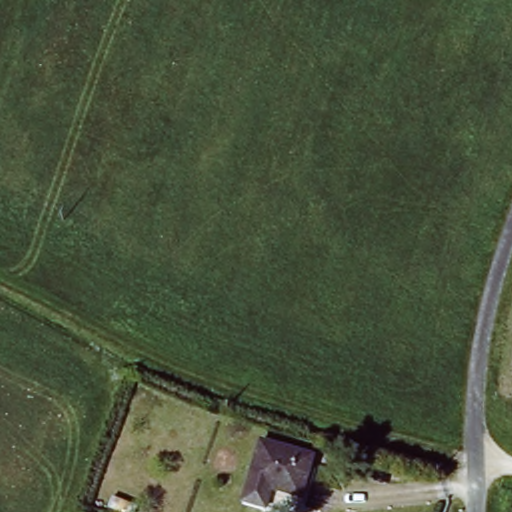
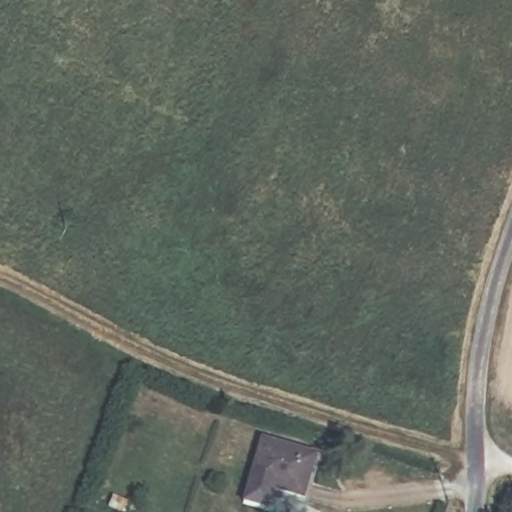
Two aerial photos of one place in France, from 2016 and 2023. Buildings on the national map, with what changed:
unchanged [(245,481),(259,440),(312,458),(299,497),(245,481)]

